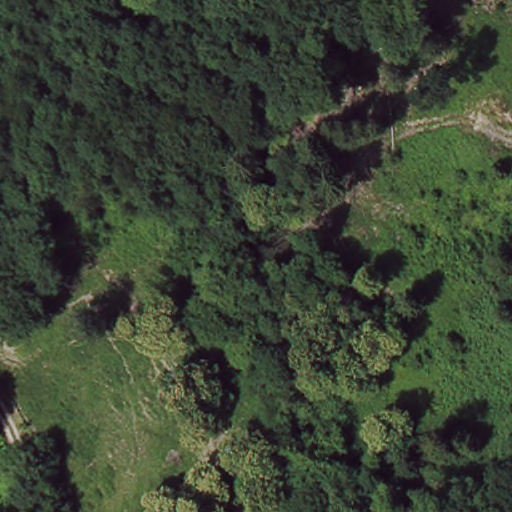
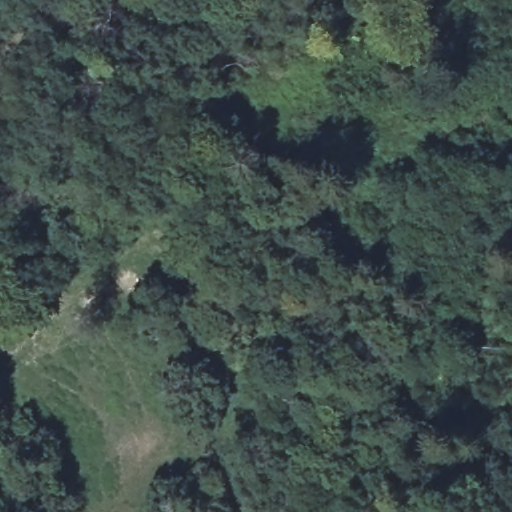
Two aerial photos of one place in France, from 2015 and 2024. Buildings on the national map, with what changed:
unchanged [(17,324),(10,299),(40,292),(47,316),(17,324)]

